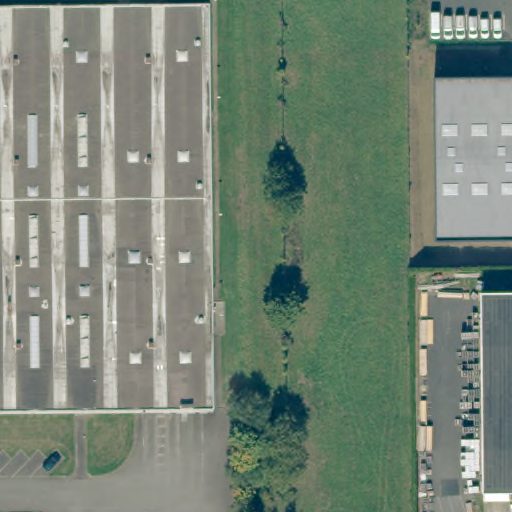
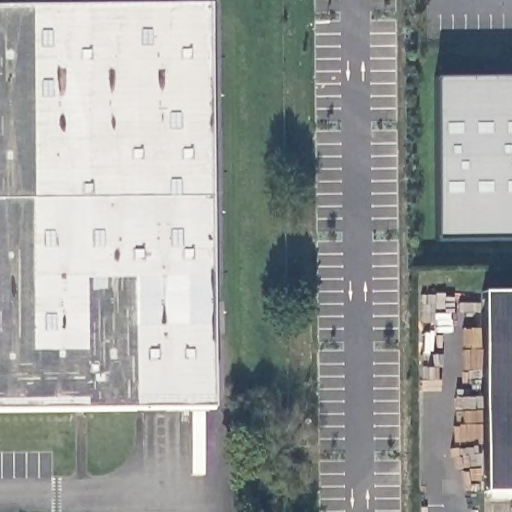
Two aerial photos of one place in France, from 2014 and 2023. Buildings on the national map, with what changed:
unchanged [(160,0),(204,0),(208,401),(0,403),(0,2),(160,0)]
unchanged [(433,74),(468,74),(495,74),(512,102),(512,237),(435,239),(433,74)]
unchanged [(483,293),(512,293),(512,492),(485,493),(483,293)]

